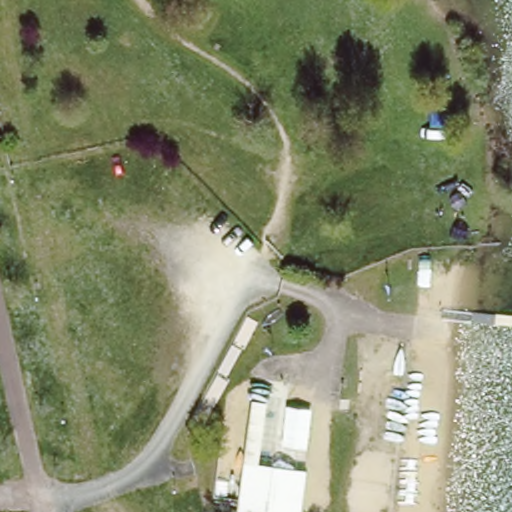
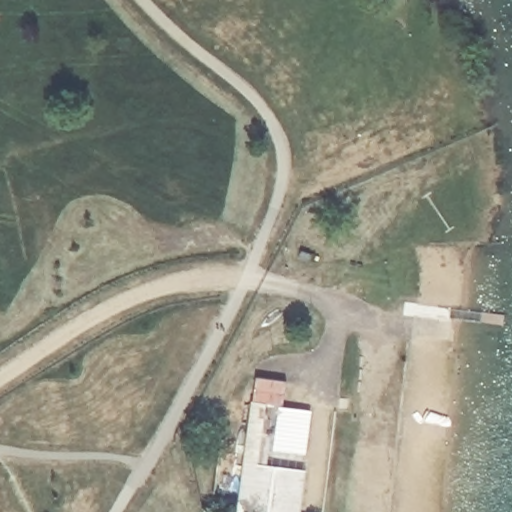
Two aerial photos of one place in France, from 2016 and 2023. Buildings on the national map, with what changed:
unchanged [(240,503),(254,402),(256,384),(286,388),(284,406),(310,410),(297,511),(285,509),(284,512),(239,512),(240,503)]

